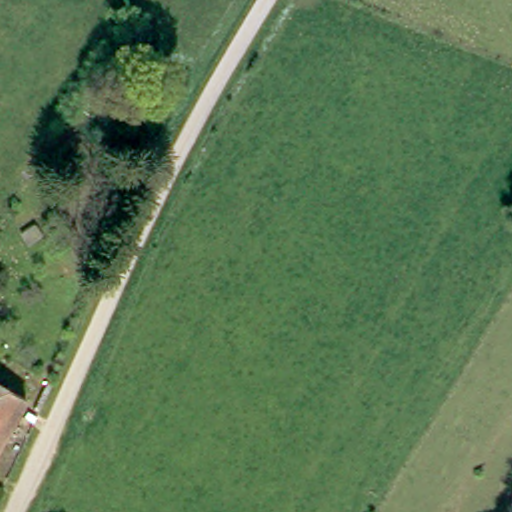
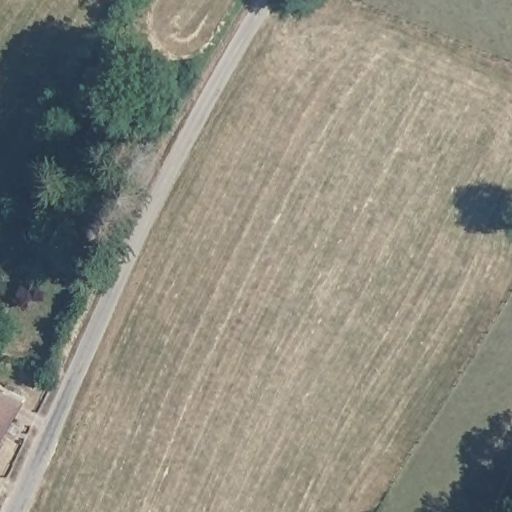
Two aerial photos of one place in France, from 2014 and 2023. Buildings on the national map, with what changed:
unchanged [(131,120),(140,96),(170,107),(159,131),(131,120)]
unchanged [(26,405),(0,456),(0,392),(26,405)]

